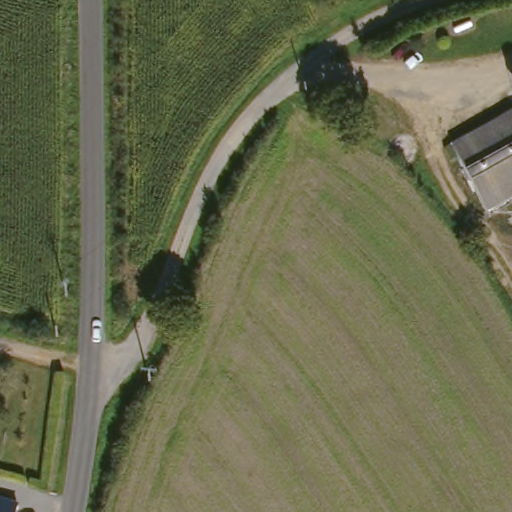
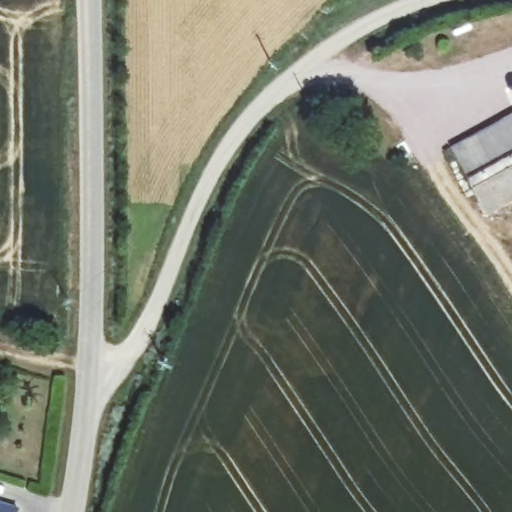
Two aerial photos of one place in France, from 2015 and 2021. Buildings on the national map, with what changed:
unchanged [(512,197),(485,212),(450,148),(512,114),(512,197)]
unchanged [(24,493),(19,512),(0,512),(0,487),(24,493)]

